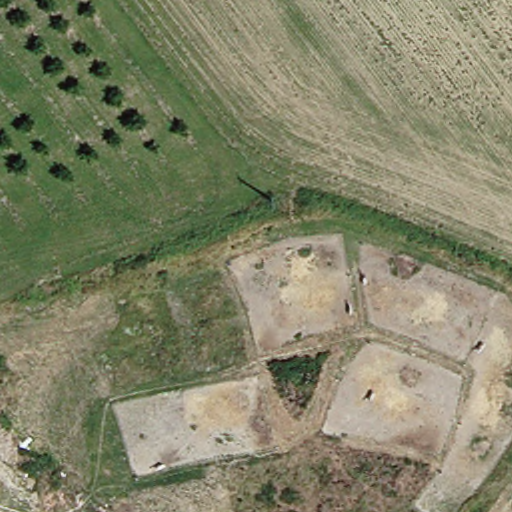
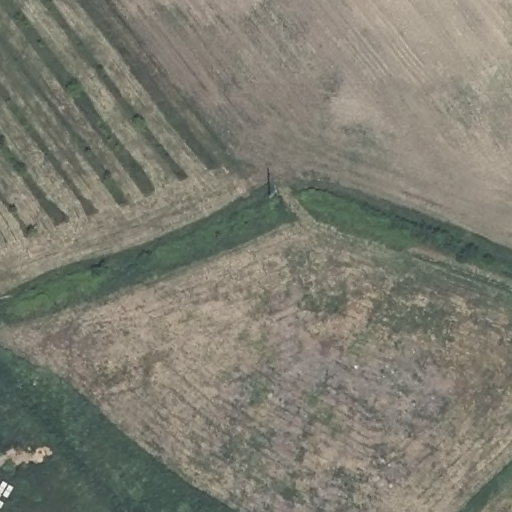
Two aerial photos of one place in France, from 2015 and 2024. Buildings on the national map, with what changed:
unchanged [(0,479),(0,476),(1,477),(0,479)]

